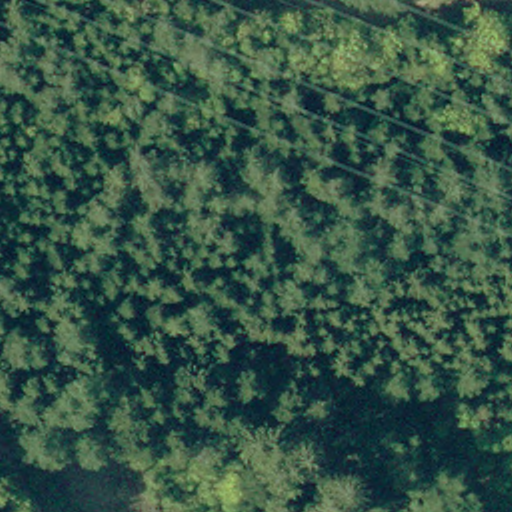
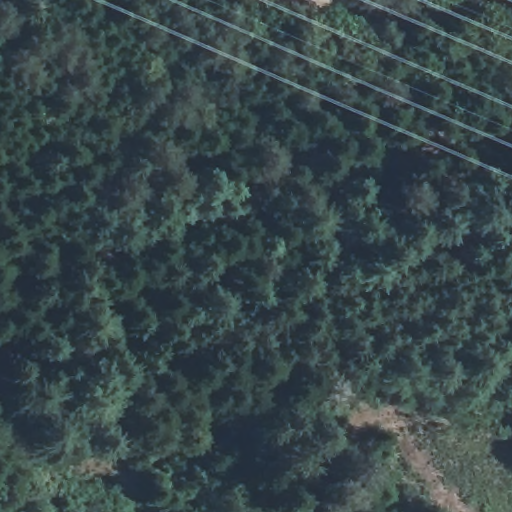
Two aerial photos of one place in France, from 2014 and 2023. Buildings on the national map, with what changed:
[]

